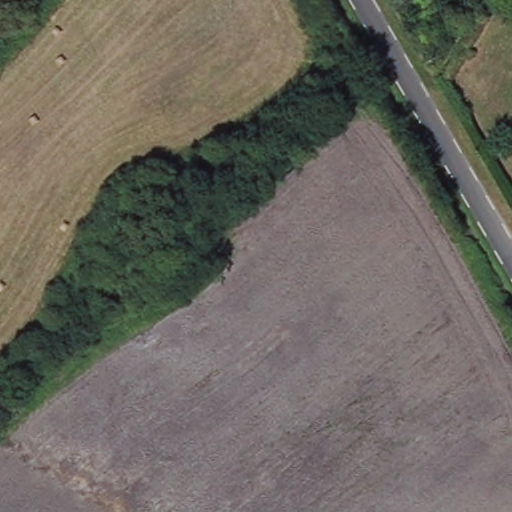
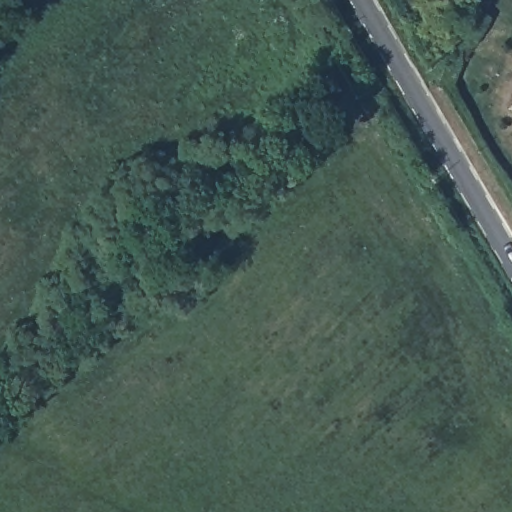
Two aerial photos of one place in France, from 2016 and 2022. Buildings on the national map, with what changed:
[]

